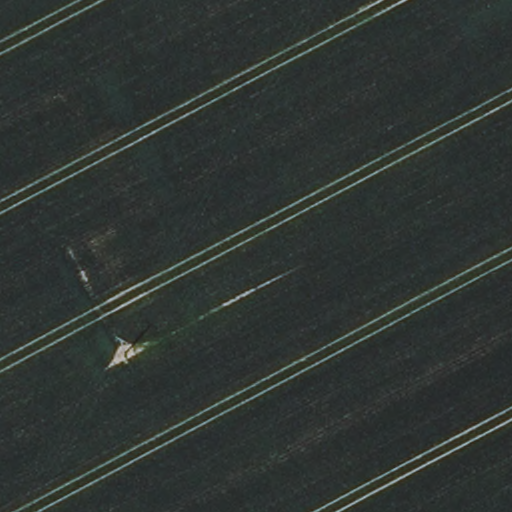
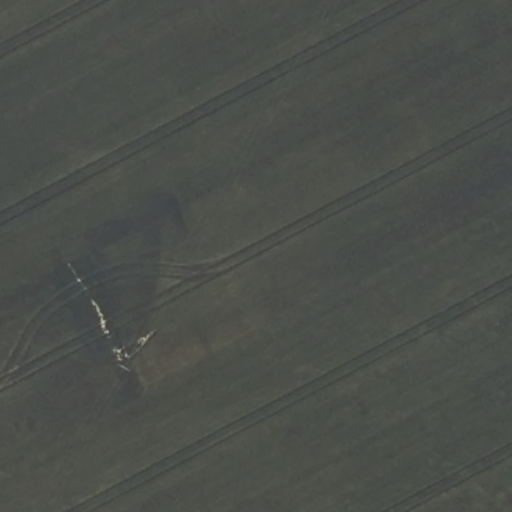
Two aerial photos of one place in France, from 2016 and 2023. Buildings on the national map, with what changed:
[]

